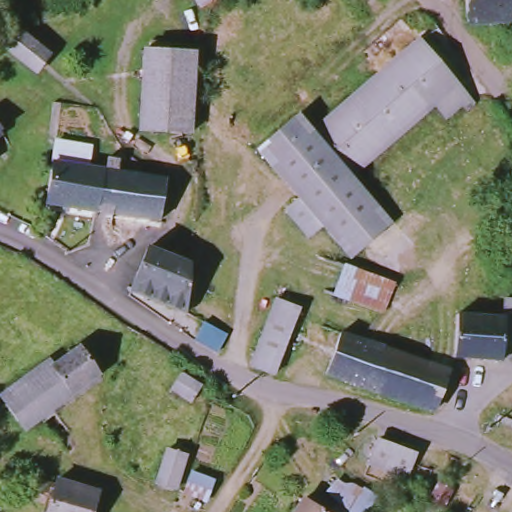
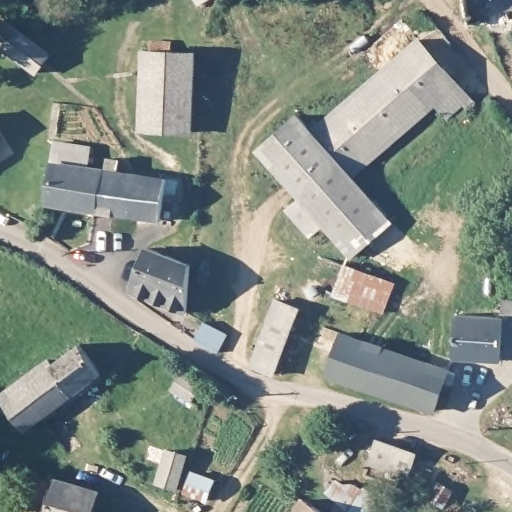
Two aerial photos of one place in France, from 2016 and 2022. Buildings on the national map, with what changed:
unchanged [(201,11),(194,0),(217,0),(201,11)]
unchanged [(465,0),(512,0),(512,17),(467,21),(465,0)]
unchanged [(39,77),(0,45),(0,30),(9,20),(54,59),(39,77)]
unchanged [(352,183),(387,227),(348,261),(323,230),(308,242),(305,239),(287,214),(300,205),(259,157),(298,122),(312,137),(424,40),(474,101),(453,120),(442,107),(352,183)]
unchanged [(196,132),(143,129),(147,52),(199,54),(196,132)]
unchanged [(121,229),(123,218),(46,206),(52,161),(54,141),(92,147),(89,168),(105,171),(107,159),(121,161),(119,172),(162,179),(157,223),(150,222),(135,220),(133,232),(121,229)]
unchanged [(187,315),(149,301),(142,302),(127,292),(151,250),(190,268),(187,315)]
unchanged [(332,292),(340,267),(389,280),(385,293),(381,307),(363,302),(332,292)]
unchanged [(286,361),(278,375),(256,363),(264,349),(277,314),(282,300),(304,308),(302,313),(286,361)]
unchanged [(458,365),(459,321),(498,322),(498,305),(512,305),(512,348),(501,366),(458,365)]
unchanged [(223,352),(201,338),(208,323),(232,335),(223,352)]
unchanged [(451,372),(438,412),(334,378),(347,337),(451,372)]
unchanged [(43,362),(51,374),(82,354),(100,382),(24,432),(0,396),(0,391),(43,362)]
unchanged [(207,382),(196,399),(175,385),(187,368),(207,382)]
unchanged [(416,453),(406,478),(369,463),(379,439),(416,453)]
unchanged [(217,477),(209,501),(180,492),(157,484),(169,446),(192,453),(188,467),(188,468),(217,477)]
unchanged [(460,484),(450,503),(432,493),(442,475),(460,484)]
unchanged [(355,479),(381,493),(370,512),(353,512),(356,507),(330,492),(339,476),(353,483),(355,479)]
unchanged [(33,498),(39,483),(57,490),(62,477),(105,493),(98,512),(49,512),(52,505),(33,498)]
unchanged [(323,512),(296,512),(304,500),(323,512)]

